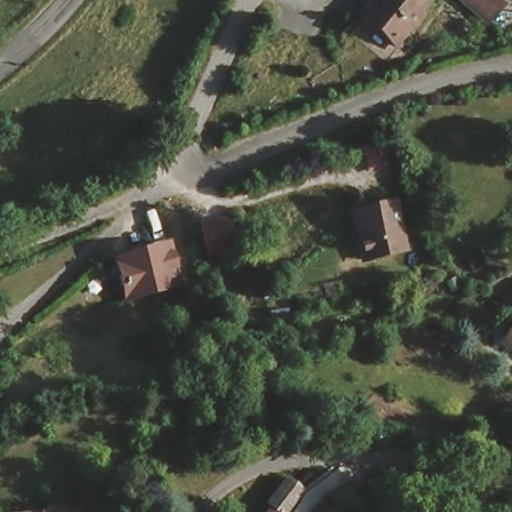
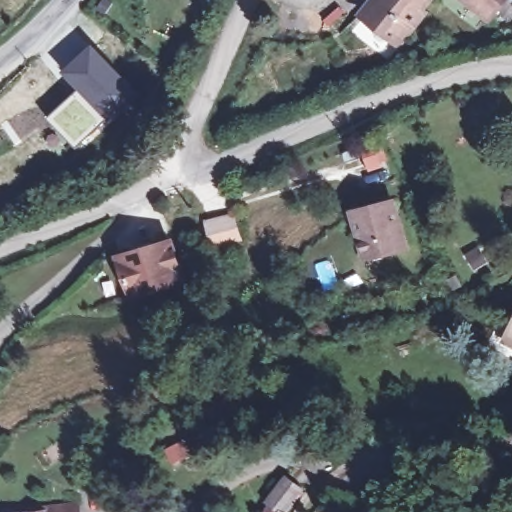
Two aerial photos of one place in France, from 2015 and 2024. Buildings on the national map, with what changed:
unchanged [(422,9),(428,15),(402,38),(398,42),(363,5),(368,0),(433,0),(422,9)]
unchanged [(488,26),(463,0),(512,0),(512,3),(488,26)]
new [(93,42),(145,98),(113,126),(78,89),(62,73),(93,42)]
new [(78,89),(113,126),(79,153),(47,118),(78,89)]
unchanged [(409,254),(371,263),(358,210),(396,200),(409,254)]
unchanged [(169,241),(182,279),(129,295),(117,257),(169,241)]
unchanged [(292,512),(273,512),(275,511),(271,508),(291,485),(305,498),(292,512)]
unchanged [(83,512),(52,512),(83,507),(83,512)]

